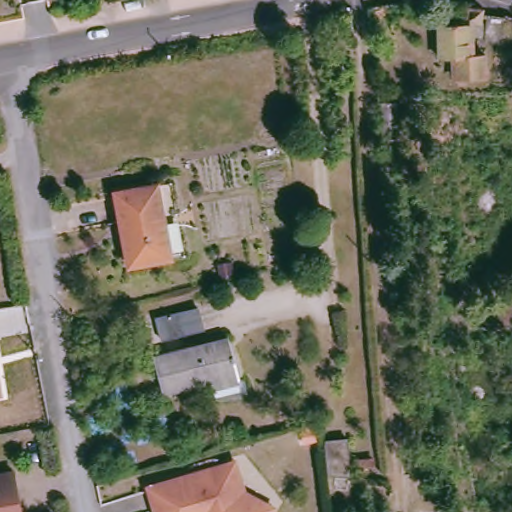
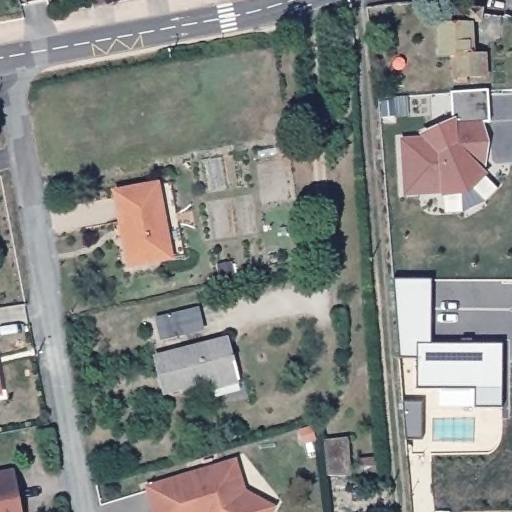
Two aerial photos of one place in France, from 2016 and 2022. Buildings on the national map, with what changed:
unchanged [(470,4),(469,19),(457,19),(457,0),(470,4)]
unchanged [(491,17),(491,44),(475,44),(475,16),(491,17)]
unchanged [(460,51),(473,51),(474,72),(445,72),(444,52),(432,53),(428,24),(457,23),(460,51)]
new [(402,140),(421,140),(419,136),(454,121),(453,94),(488,92),(490,124),(485,125),(487,166),(479,166),(489,175),(469,195),(440,197),(404,197),(402,140)]
demolished [(399,141),(385,143),(383,109),(396,108),(399,141)]
unchanged [(171,258),(127,267),(112,195),(157,186),(171,258)]
new [(502,410),(474,409),(475,390),(418,389),(418,358),(400,358),(395,281),(431,282),(431,346),(502,345),(502,410)]
unchanged [(203,325),(176,331),(177,338),(161,340),(157,318),(199,308),(203,325)]
unchanged [(240,381),(212,387),(211,384),(163,395),(155,355),(188,347),(189,350),(230,341),(240,381)]
unchanged [(0,395),(0,376),(3,395),(0,395)]
unchanged [(351,478),(329,477),(325,444),(349,442),(351,478)]
unchanged [(227,467),(236,465),(245,498),(266,512),(152,512),(146,490),(227,467)]
unchanged [(15,496),(12,496),(13,507),(18,506),(19,512),(0,512),(0,477),(12,475),(15,496)]

